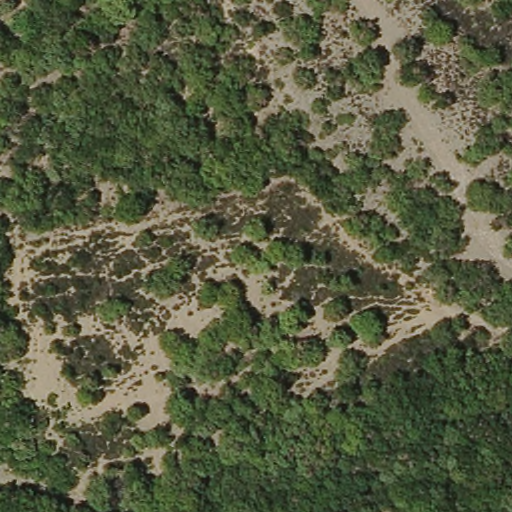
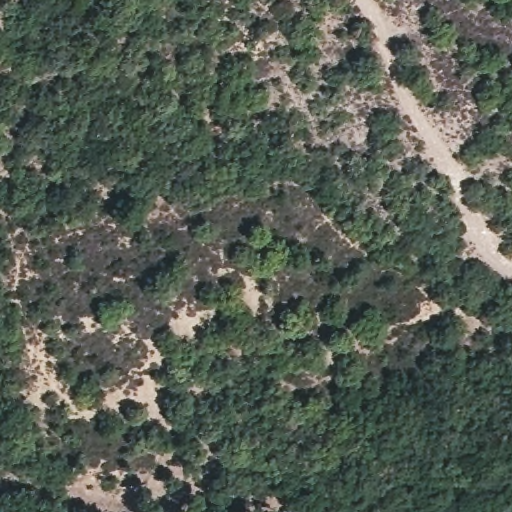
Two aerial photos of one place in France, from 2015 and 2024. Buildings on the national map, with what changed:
unchanged [(0,436),(20,433),(28,470),(0,472),(0,436)]

